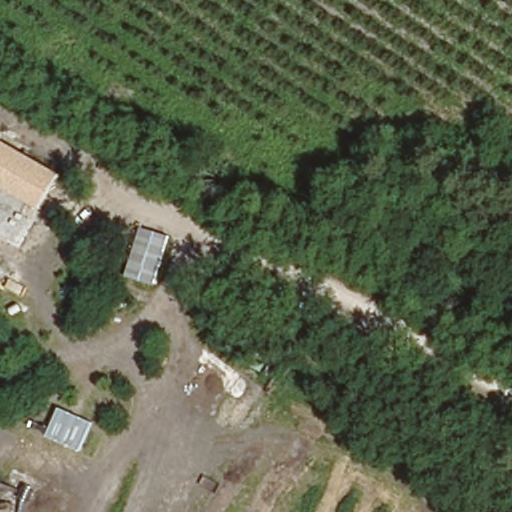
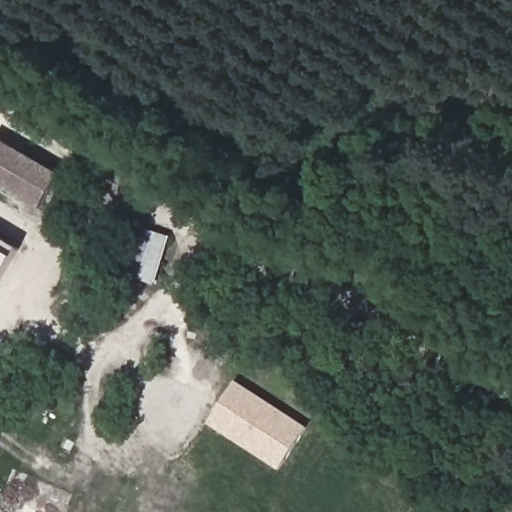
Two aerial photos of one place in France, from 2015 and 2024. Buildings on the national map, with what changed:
unchanged [(0,187),(0,139),(64,175),(44,211),(0,187)]
unchanged [(156,286),(125,277),(141,228),(172,236),(156,286)]
new [(0,281),(0,237),(20,249),(0,281)]
new [(261,459),(207,424),(235,381),(306,428),(283,463),(261,459)]
demolished [(79,452),(43,437),(57,407),(93,421),(79,452)]

